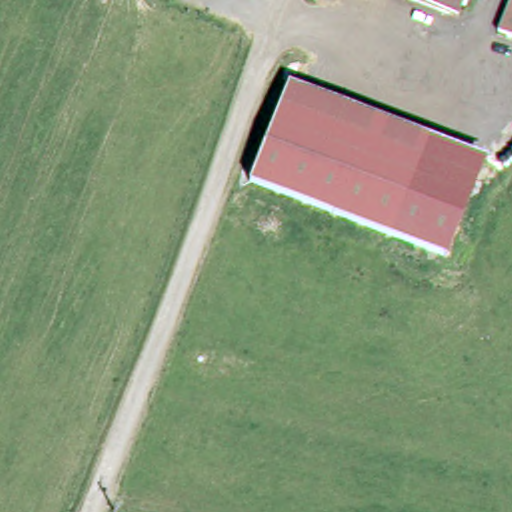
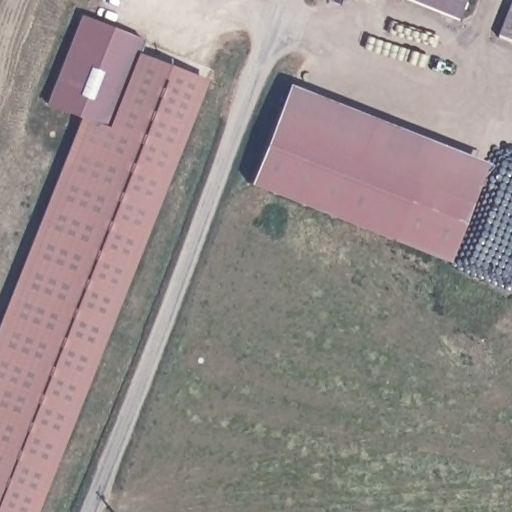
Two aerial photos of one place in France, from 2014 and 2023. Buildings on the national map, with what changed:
unchanged [(459,16),(422,0),(466,0),(459,16)]
unchanged [(512,10),(512,42),(501,38),(512,10)]
new [(34,512),(0,512),(0,319),(80,116),(46,104),(82,14),(143,40),(138,52),(206,79),(34,512)]
unchanged [(453,246),(256,168),(286,93),(484,172),(453,246)]

